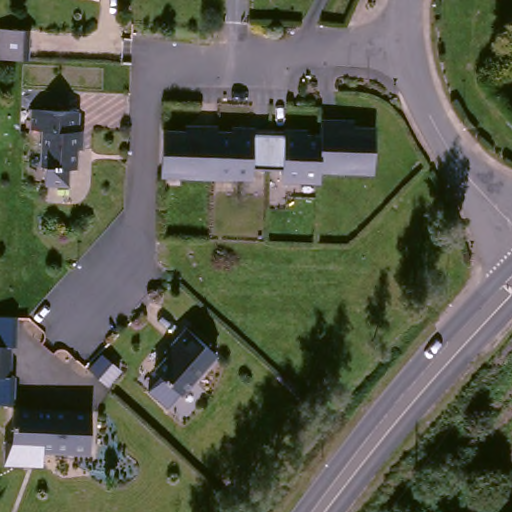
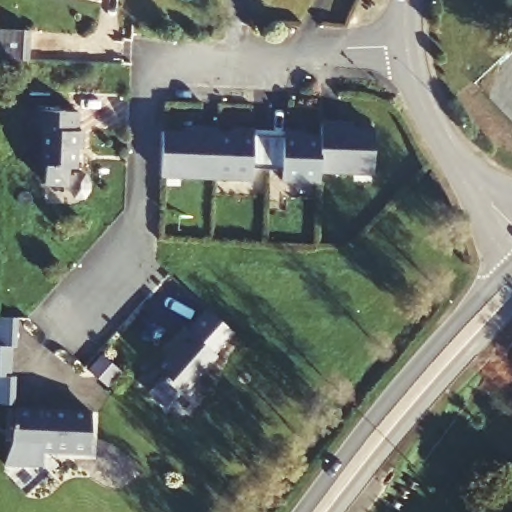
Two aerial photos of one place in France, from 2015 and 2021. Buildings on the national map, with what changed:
unchanged [(3,31),(32,34),(30,63),(2,61),(3,31)]
unchanged [(83,134),(82,152),(77,152),(76,170),(69,170),(67,187),(44,186),(45,170),(39,169),(43,133),(33,132),(33,112),(81,115),(78,133),(83,134)]
unchanged [(268,170),(249,168),(246,179),(178,174),(178,168),(159,167),(162,129),(193,132),(194,124),(216,125),(216,133),(237,134),(238,126),(253,127),(251,134),(270,135),(268,170)]
unchanged [(283,137),(283,129),(295,129),(295,138),(319,139),(320,124),(338,124),(341,130),(374,134),(373,171),(353,171),(353,176),(321,176),(321,183),(280,180),(281,171),(268,170),(270,135),(283,137)]
unchanged [(184,393),(156,370),(169,355),(166,352),(202,306),(231,332),(184,393)]
unchanged [(0,317),(17,317),(16,347),(11,346),(11,377),(14,377),(13,404),(0,403),(0,317)]
unchanged [(86,411),(84,451),(36,449),(36,441),(6,440),(8,408),(86,411)]

